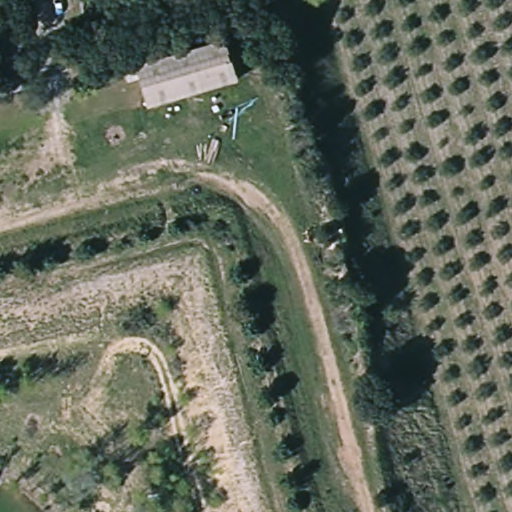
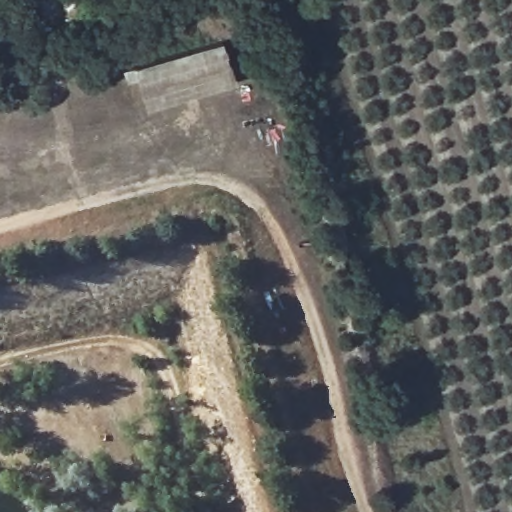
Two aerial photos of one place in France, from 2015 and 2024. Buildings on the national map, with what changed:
unchanged [(228,41),(236,84),(148,102),(138,60),(228,41)]

